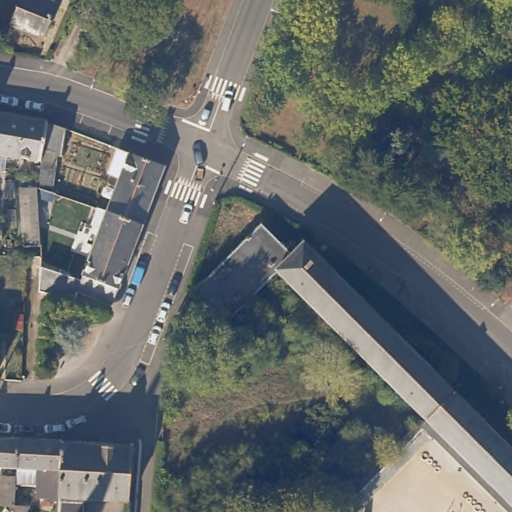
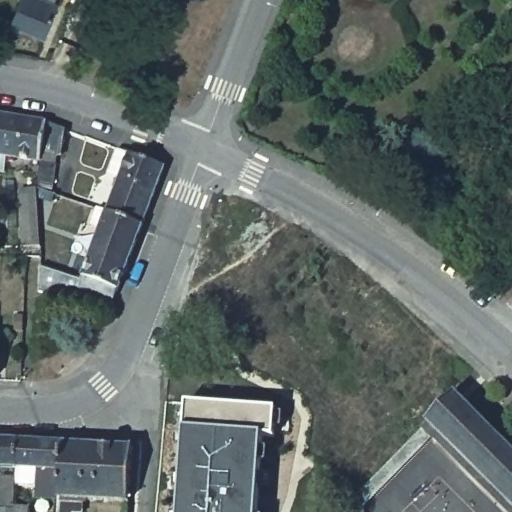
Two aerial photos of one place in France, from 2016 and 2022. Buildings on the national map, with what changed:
unchanged [(57,3),(45,35),(13,22),(22,0),(54,0),(53,1),(57,3)]
unchanged [(40,157),(0,150),(0,110),(45,117),(40,157)]
unchanged [(64,124),(61,148),(61,152),(57,151),(55,186),(36,185),(40,157),(45,117),(64,124)]
unchanged [(104,208),(118,172),(106,168),(116,144),(163,161),(140,221),(104,208)]
unchanged [(37,243),(20,244),(19,185),(36,185),(37,243)]
unchanged [(140,221),(110,301),(74,288),(71,295),(35,288),(38,275),(37,264),(78,277),(96,225),(90,222),(96,205),(104,208),(140,221)]
demolished [(388,372),(281,263),(227,316),(196,286),(265,219),(295,249),(308,236),(455,387),(430,414),(388,372)]
unchanged [(455,387),(475,407),(512,444),(512,495),(430,414),(455,387)]
new [(275,436),(263,434),(257,512),(179,512),(186,428),(187,401),(277,408),(275,436)]
unchanged [(422,422),(430,414),(512,495),(512,509),(434,432),(426,424),(425,426),(422,422)]
unchanged [(352,499),(425,426),(426,424),(434,432),(362,505),(362,512),(352,512),(352,499)]
unchanged [(0,435),(16,436),(15,462),(0,461),(0,435)]
unchanged [(15,462),(16,436),(61,438),(60,464),(59,490),(35,489),(36,479),(15,477),(14,490),(13,499),(0,499),(0,472),(15,472),(15,462)]
unchanged [(131,442),(127,494),(59,490),(60,464),(61,438),(131,442)]
unchanged [(27,512),(12,512),(13,499),(27,500),(27,512)]

